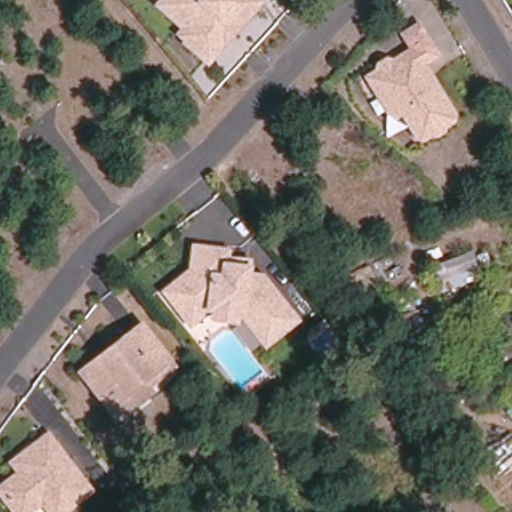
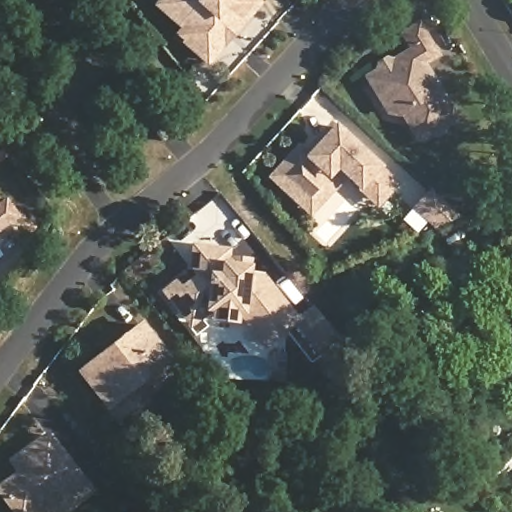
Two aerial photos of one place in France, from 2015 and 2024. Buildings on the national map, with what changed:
unchanged [(186,37),(188,35),(180,27),(185,22),(162,0),(261,0),(242,21),(208,57),(205,54),(186,37)]
unchanged [(456,115),(453,125),(424,143),(414,141),(402,120),(382,116),(363,77),(374,70),(370,63),(387,52),(392,59),(408,48),(397,32),(418,21),(440,56),(424,66),(456,115)]
unchanged [(128,145),(120,136),(135,124),(142,132),(128,145)]
new [(362,187),(349,174),(314,212),(304,203),(275,177),(302,147),(312,156),(320,147),(316,144),(334,125),(398,184),(384,200),(380,204),(362,187)]
new [(463,216),(441,226),(420,207),(435,191),(463,216)]
new [(5,197),(20,217),(0,232),(0,201),(5,197)]
unchanged [(216,305),(206,312),(198,319),(188,306),(173,287),(200,266),(203,244),(235,247),(234,256),(256,258),(255,265),(254,272),(270,274),(303,317),(272,341),(248,308),(241,318),(221,316),(216,305)]
unchanged [(430,270),(472,253),(481,276),(439,293),(430,270)]
unchanged [(342,346),(324,360),(307,337),(308,330),(321,320),(342,346)]
unchanged [(113,416),(104,405),(77,368),(93,357),(124,332),(137,322),(169,364),(143,384),(148,390),(113,416)]
unchanged [(72,512),(48,512),(44,507),(38,512),(13,512),(0,495),(22,478),(14,467),(21,462),(50,440),(93,496),(72,512)]
unchanged [(129,491),(145,477),(149,475),(160,488),(156,492),(140,505),(129,491)]

